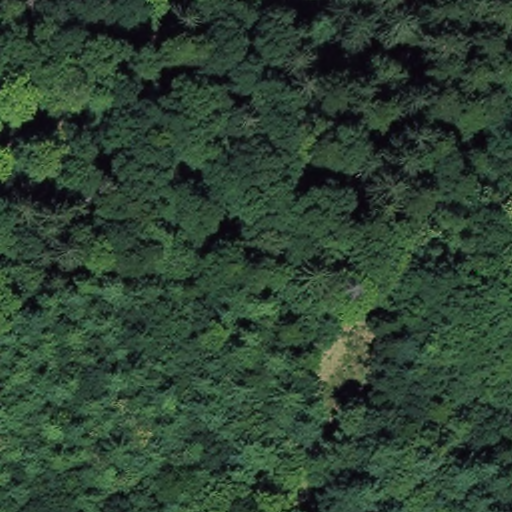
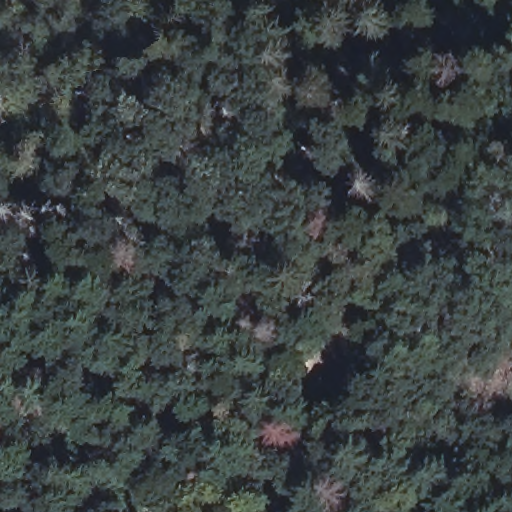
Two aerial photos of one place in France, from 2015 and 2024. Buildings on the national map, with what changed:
[]

